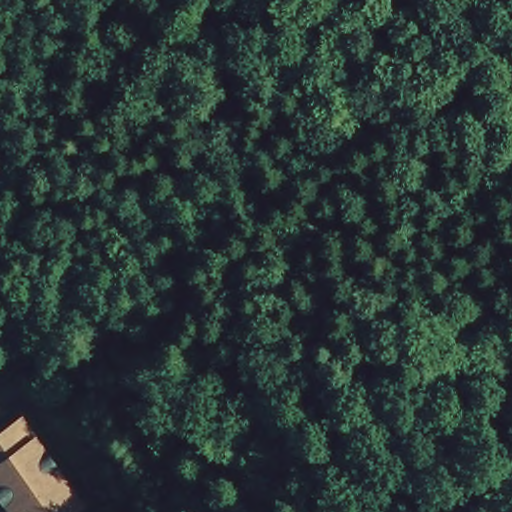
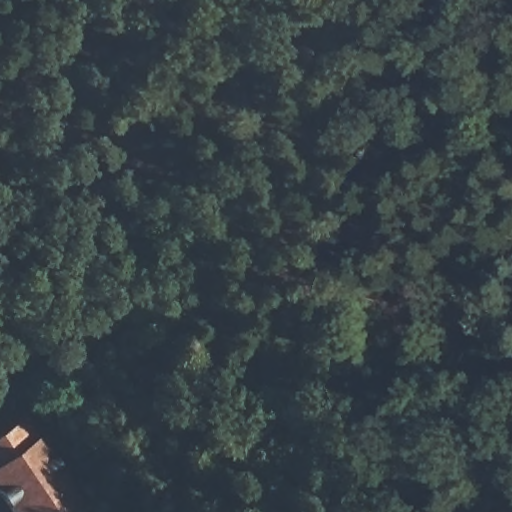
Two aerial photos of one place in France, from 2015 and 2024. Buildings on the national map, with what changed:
unchanged [(27,421),(87,509),(83,512),(15,512),(0,491),(0,440),(27,421)]

